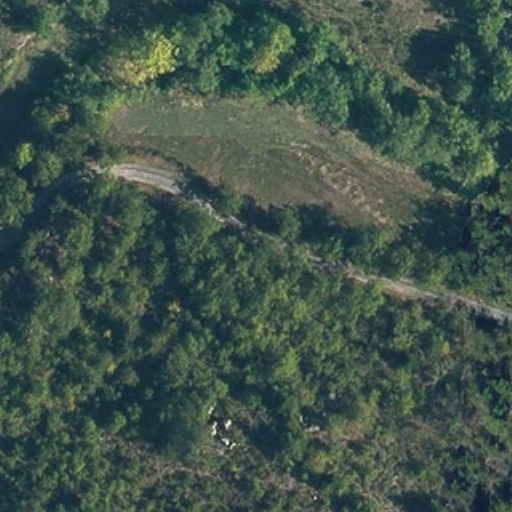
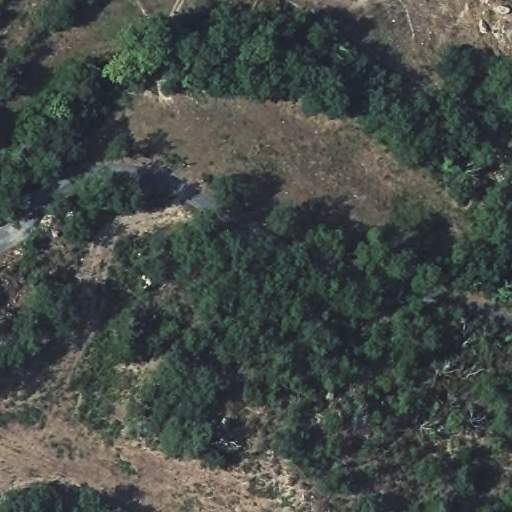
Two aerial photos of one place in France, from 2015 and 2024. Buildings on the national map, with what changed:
[]

